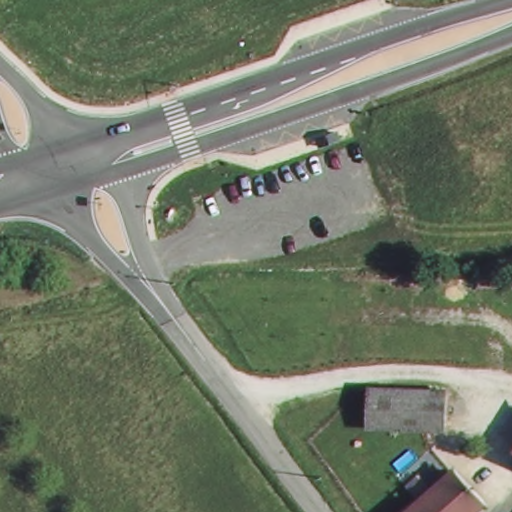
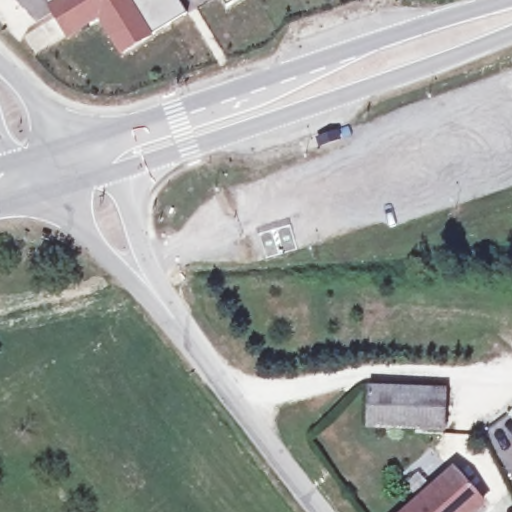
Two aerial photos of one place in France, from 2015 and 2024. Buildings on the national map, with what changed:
new [(121,56),(98,20),(67,39),(45,0),(132,0),(155,35),(121,56)]
new [(155,35),(132,0),(181,0),(189,14),(155,35)]
unchanged [(379,383),(453,388),(450,429),(376,425),(379,383)]
unchanged [(452,463),(462,473),(467,480),(433,509),(430,512),(402,512),(452,463)]
unchanged [(493,509),(490,512),(436,512),(433,509),(467,480),(493,509)]
unchanged [(433,509),(436,512),(430,512),(433,509)]

